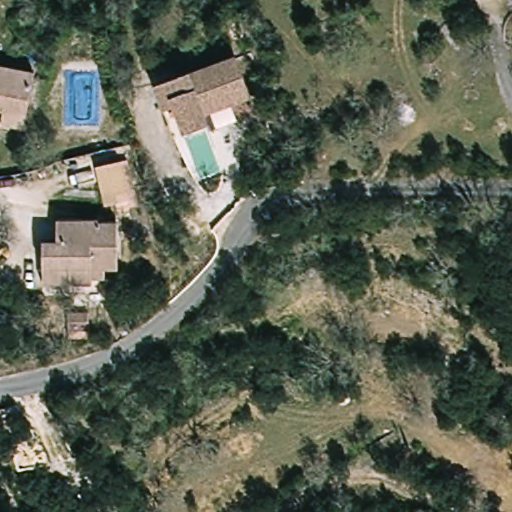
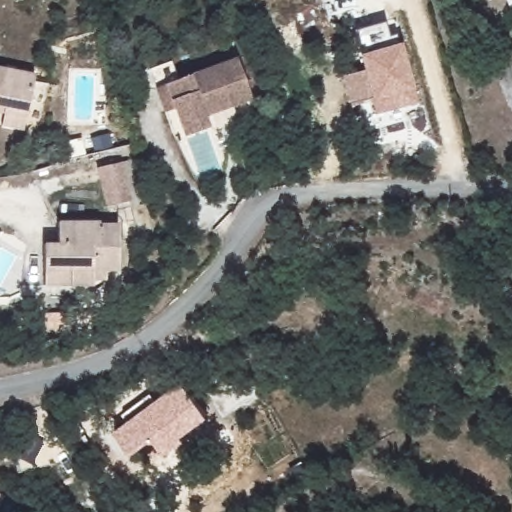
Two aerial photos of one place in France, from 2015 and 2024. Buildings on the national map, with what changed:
new [(372,102),(350,107),(341,77),(363,71),(358,55),(362,54),(354,30),(385,21),(390,36),(397,34),(401,42),(415,90),(417,102),(375,115),(372,102)]
unchanged [(242,59),(255,101),(212,113),(215,125),(189,132),(175,135),(162,83),(174,79),(242,59)]
unchanged [(8,115),(0,113),(0,66),(39,76),(28,120),(25,133),(4,128),(8,115)]
new [(127,164),(135,204),(110,207),(103,170),(127,164)]
unchanged [(95,278),(95,286),(73,285),(43,283),(45,262),(45,240),(67,241),(67,219),(106,221),(106,228),(127,229),(125,271),(112,270),(111,280),(95,278)]
new [(208,415),(182,435),(185,438),(165,454),(153,437),(131,453),(114,430),(127,421),(122,413),(150,393),(157,399),(182,381),(208,415)]
unchanged [(0,504),(0,488),(8,492),(3,507),(0,504)]

